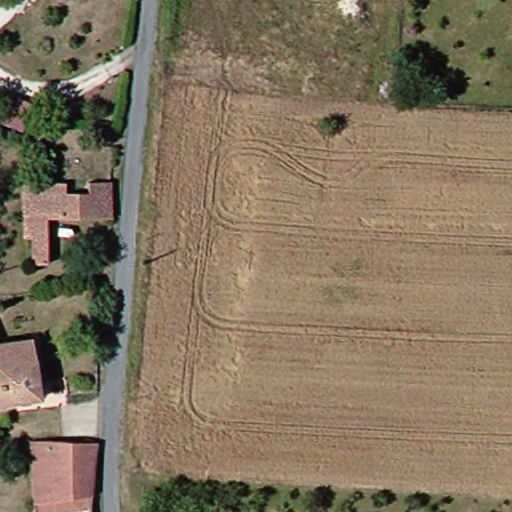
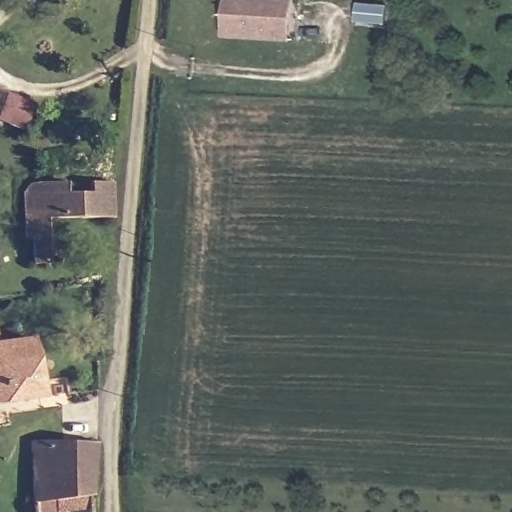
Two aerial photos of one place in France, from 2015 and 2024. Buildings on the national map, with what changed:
new [(226,39),(228,0),(298,0),(295,43),(226,39)]
unchanged [(24,265),(24,237),(19,237),(18,222),(18,188),(59,188),(59,199),(83,199),(83,189),(108,188),(108,221),(41,222),(43,266),(24,265)]
unchanged [(32,401),(0,405),(0,349),(26,347),(32,401)]
unchanged [(26,511),(26,452),(91,450),(85,509),(26,511)]

